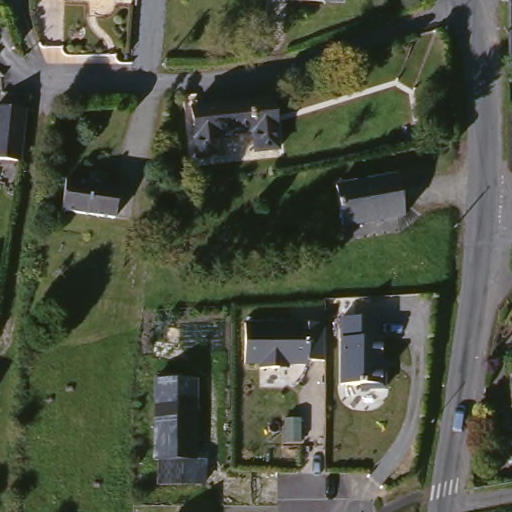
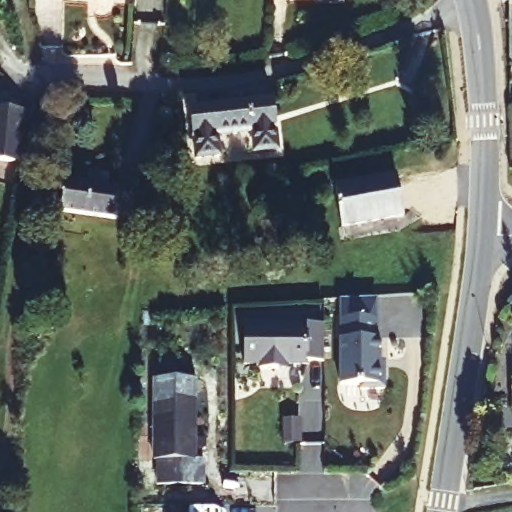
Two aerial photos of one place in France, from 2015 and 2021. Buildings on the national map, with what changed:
unchanged [(335,0),(334,5),(281,0),(335,0)]
unchanged [(271,109),(273,160),(250,161),(249,138),(214,140),(213,162),(190,164),(189,114),(271,109)]
unchanged [(15,118),(15,156),(0,155),(0,117),(15,118)]
unchanged [(61,217),(63,190),(85,192),(85,182),(98,182),(99,191),(116,192),(115,220),(61,217)]
unchanged [(335,193),(395,184),(401,228),(341,237),(335,193)]
unchanged [(271,367),(255,367),(255,362),(240,362),(240,322),(317,322),(317,350),(317,360),(300,360),(300,362),(280,362),(280,367),(271,367)]
unchanged [(379,332),(379,352),(383,352),(383,382),(387,382),(386,402),(363,402),(363,398),(343,398),(343,332),(379,332)]
unchanged [(157,392),(196,392),(196,472),(157,472),(157,392)]

